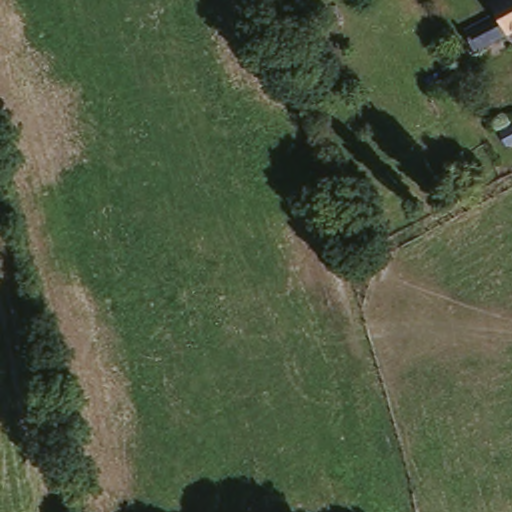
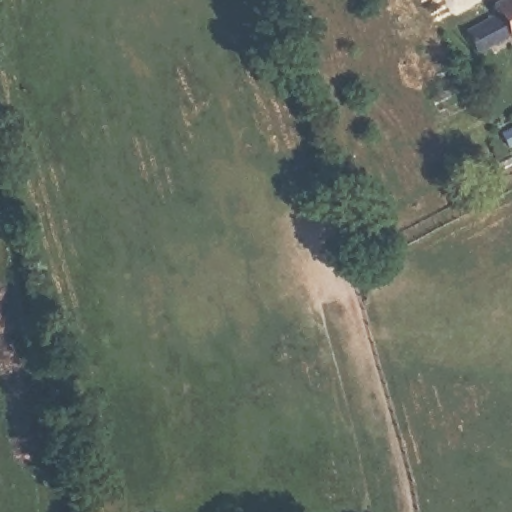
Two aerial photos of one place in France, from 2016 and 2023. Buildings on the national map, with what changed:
unchanged [(510,42),(473,64),(460,42),(495,24),(490,16),(499,11),(492,0),(512,0),(512,41),(510,42)]

